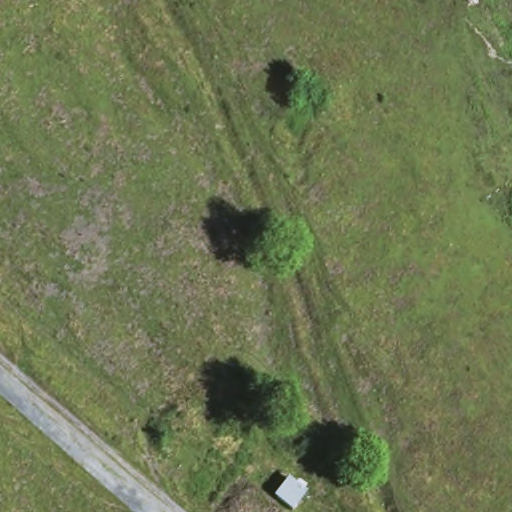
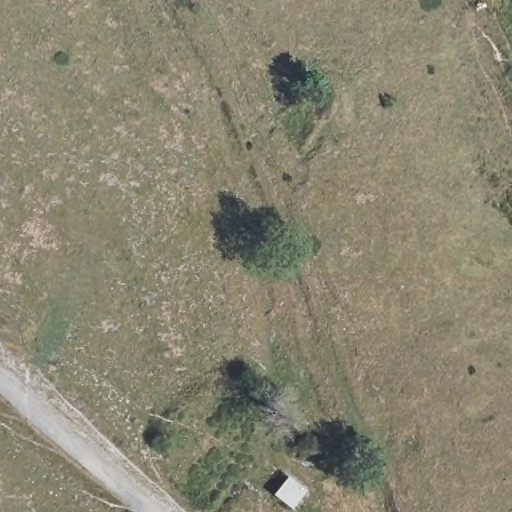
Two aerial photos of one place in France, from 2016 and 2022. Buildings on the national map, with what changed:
unchanged [(275,494),(289,479),(299,484),(312,492),(297,511),(275,494)]

